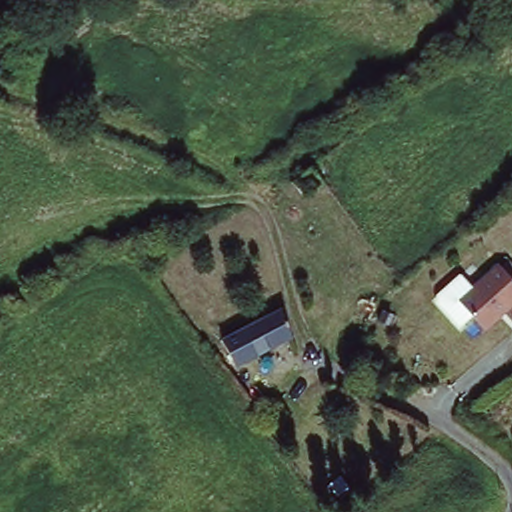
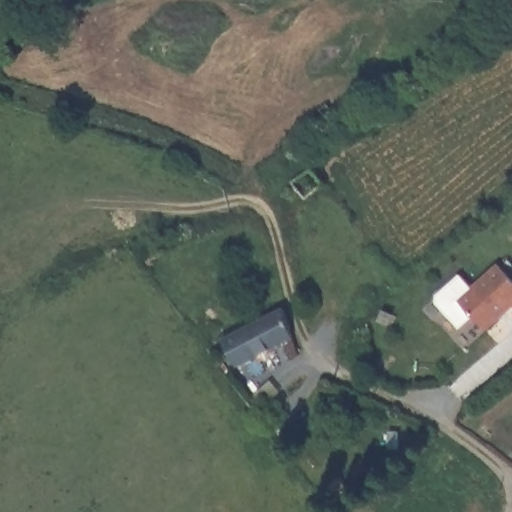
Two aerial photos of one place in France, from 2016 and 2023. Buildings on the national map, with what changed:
unchanged [(307,195),(292,177),(323,160),(331,171),(320,176),(326,181),(307,195)]
unchanged [(512,298),(510,296),(483,320),(457,292),(498,256),(512,272),(512,298)]
unchanged [(280,307),(287,330),(239,362),(225,340),(280,307)]

